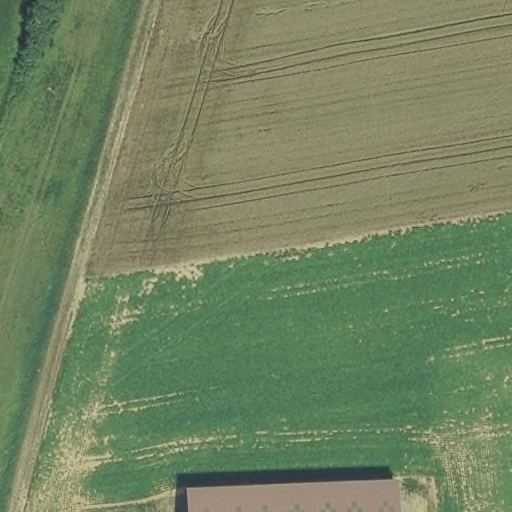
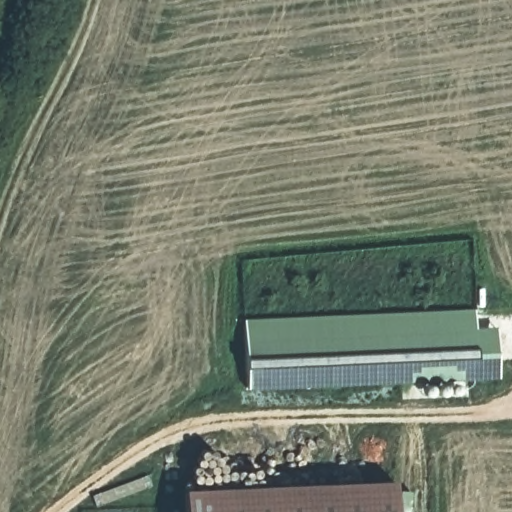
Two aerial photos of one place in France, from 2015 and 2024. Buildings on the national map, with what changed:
new [(479,311),(478,330),(498,329),(501,381),(248,393),(246,322),(479,311)]
unchanged [(186,493),(394,484),(396,512),(188,512),(186,493)]

